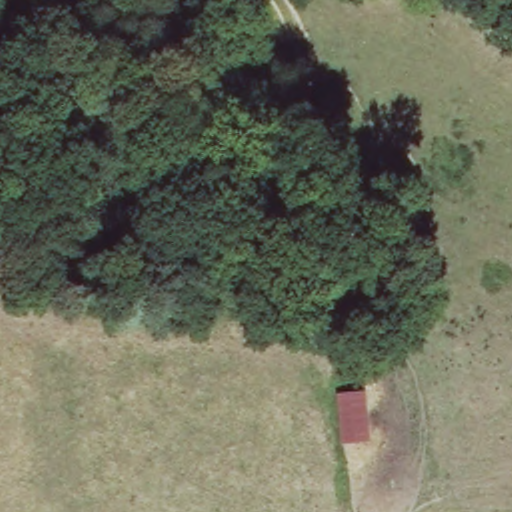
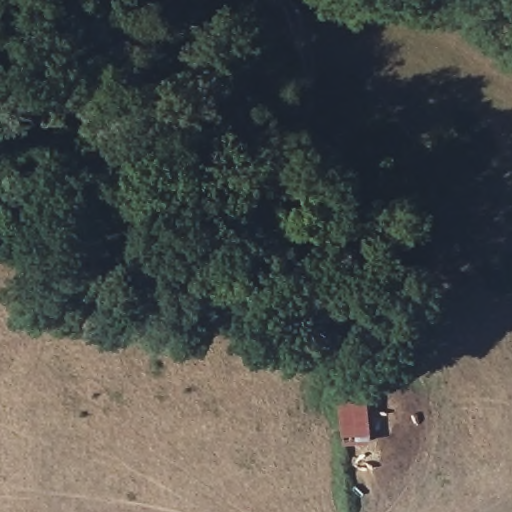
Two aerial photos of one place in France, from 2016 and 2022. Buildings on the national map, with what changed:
unchanged [(371,387),(375,443),(343,443),(339,392),(371,387)]

